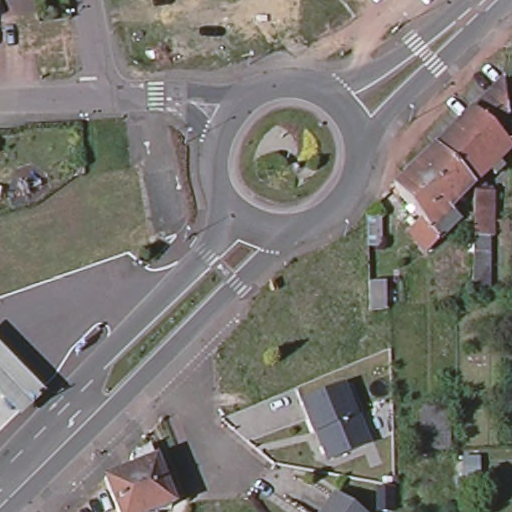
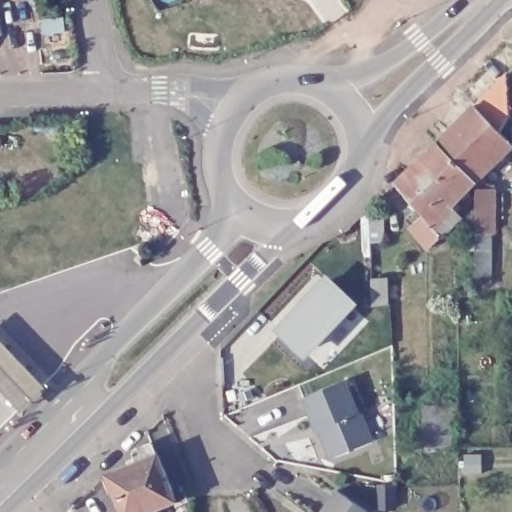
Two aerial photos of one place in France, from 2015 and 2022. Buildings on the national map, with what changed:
unchanged [(504,70),(510,110),(499,120),(476,99),(486,88),(504,70)]
unchanged [(474,101),(500,128),(512,140),(512,141),(498,156),(460,115),(474,101)]
unchanged [(436,139),(460,115),(498,156),(474,178),(436,139)]
unchanged [(395,179),(411,163),(436,139),(474,178),(454,197),(463,203),(457,209),(460,212),(439,233),(434,239),(421,226),(428,219),(395,179)]
unchanged [(495,233),(492,233),(492,281),(474,281),(474,184),(483,173),(491,189),(496,189),(495,233)]
new [(358,303),(305,360),(276,329),(327,274),(358,303)]
unchanged [(0,387),(0,341),(44,388),(21,409),(0,387)]
unchanged [(303,399),(343,381),(356,412),(359,411),(371,440),(334,456),(328,451),(323,440),(325,432),(322,426),(316,429),(303,399)]
unchanged [(447,404),(449,449),(423,449),(423,404),(447,404)]
unchanged [(137,457),(137,455),(138,453),(141,452),(155,446),(159,458),(161,457),(176,493),(176,505),(159,512),(124,512),(111,478),(141,466),(137,457)]
unchanged [(336,490),(367,512),(321,512),(336,490)]

